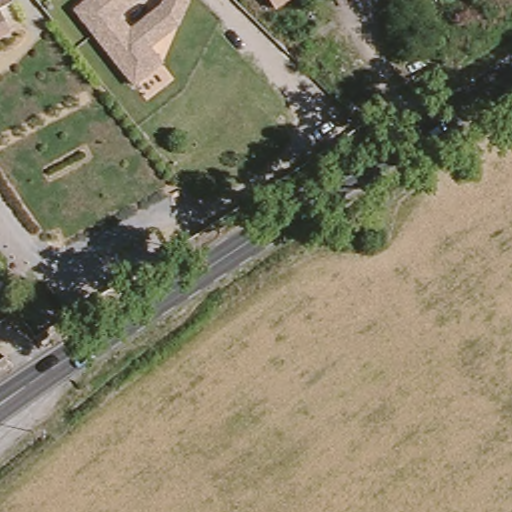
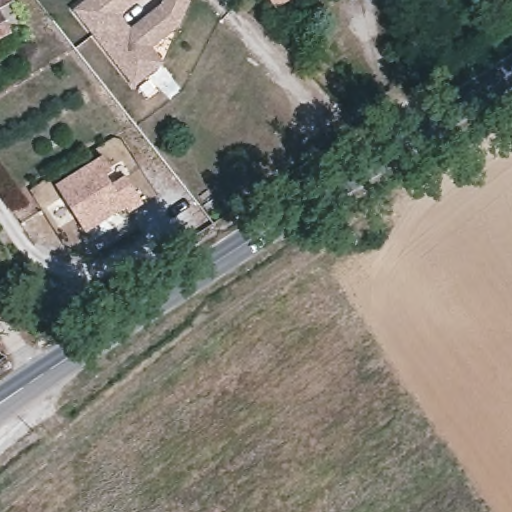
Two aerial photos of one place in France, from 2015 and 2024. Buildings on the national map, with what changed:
unchanged [(0,30),(0,0),(3,0),(14,21),(0,30)]
unchanged [(135,0),(119,13),(129,26),(155,9),(158,0),(191,0),(159,65),(134,86),(70,11),(83,0),(135,0)]
unchanged [(268,0),(295,0),(276,12),(268,0)]
new [(113,183),(128,174),(145,206),(129,214),(125,207),(86,231),(55,185),(103,156),(113,183)]

